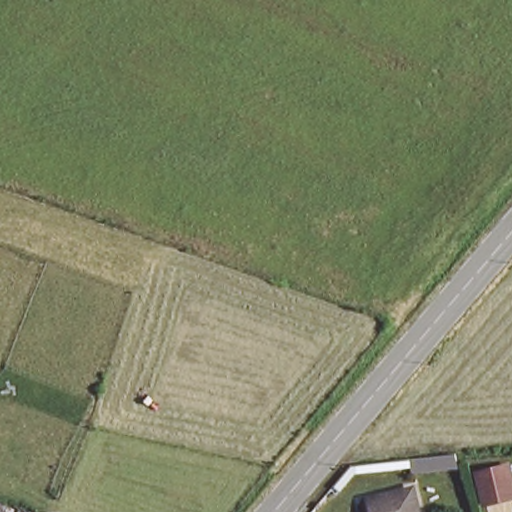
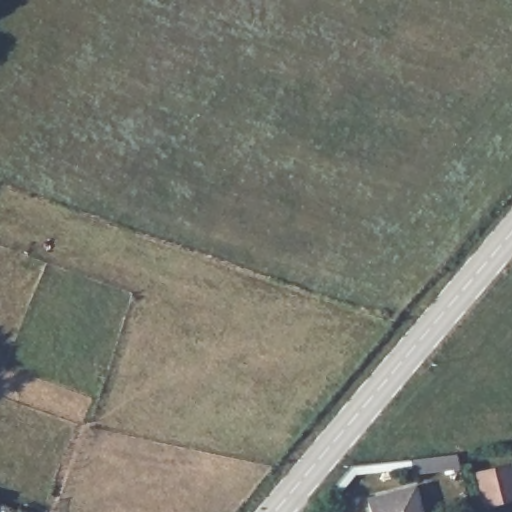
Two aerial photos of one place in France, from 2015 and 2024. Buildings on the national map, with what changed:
unchanged [(512,493),(497,496),(490,465),(512,461),(512,493)]
unchanged [(375,501),(418,489),(425,512),(378,512),(375,501)]

